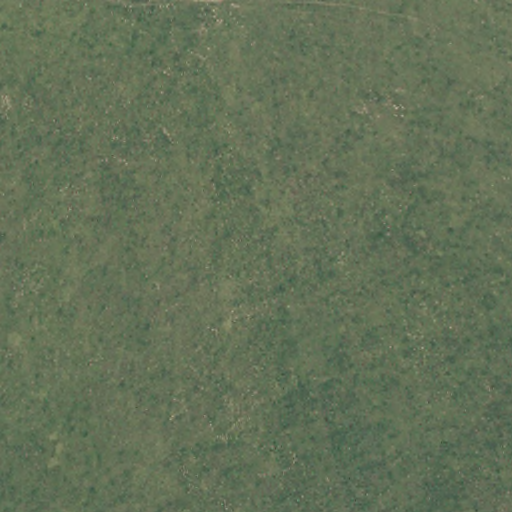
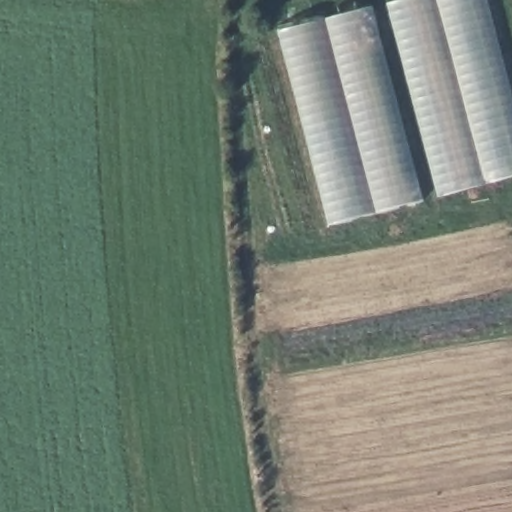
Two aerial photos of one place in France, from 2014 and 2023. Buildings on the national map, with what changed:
new [(396,0),(488,0),(512,87),(512,177),(440,197),(386,2),(396,0)]
new [(327,224),(278,30),(371,7),(422,199),(327,224)]

